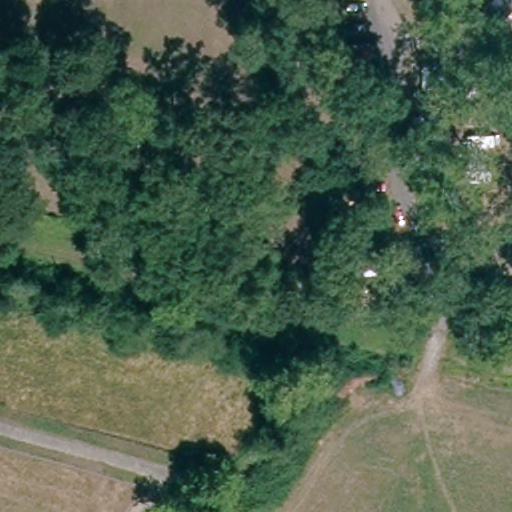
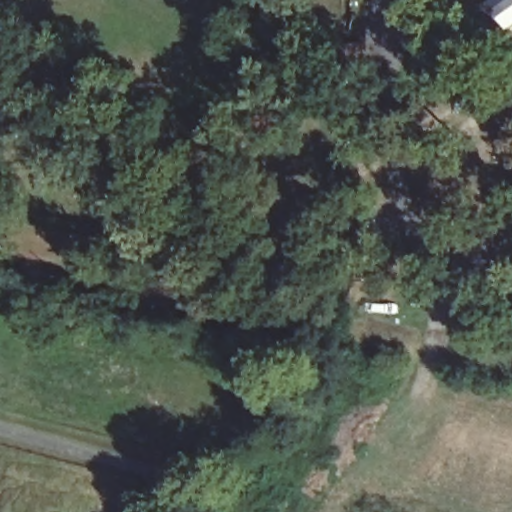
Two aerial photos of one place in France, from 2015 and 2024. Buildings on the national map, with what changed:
unchanged [(369,46),(367,73),(350,72),(351,45),(369,46)]

